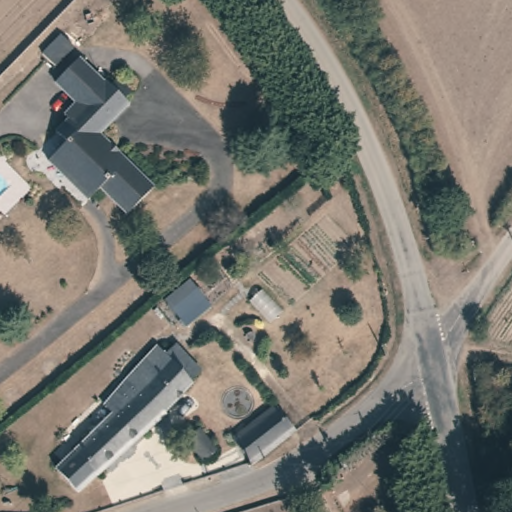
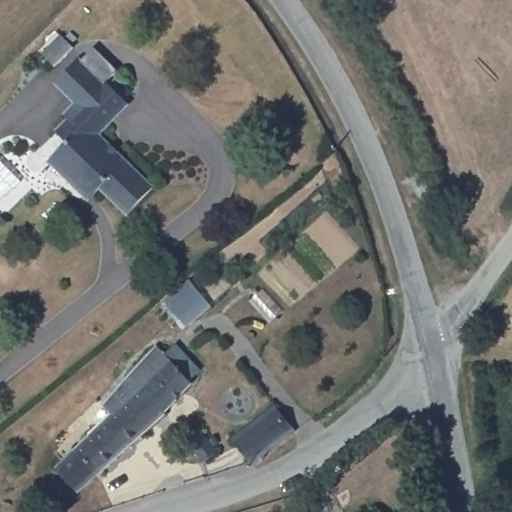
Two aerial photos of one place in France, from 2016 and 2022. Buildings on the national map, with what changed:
unchanged [(52,62),(39,50),(57,29),(70,42),(52,62)]
unchanged [(84,56),(107,79),(82,104),(58,78),(84,56)]
unchanged [(59,152),(70,141),(59,128),(82,104),(107,79),(111,82),(119,74),(136,90),(129,97),(132,101),(104,132),(117,145),(112,150),(117,154),(121,151),(159,189),(134,215),(109,189),(100,195),(97,192),(92,197),(72,177),(54,157),(59,152)]
unchanged [(72,457),(90,435),(86,431),(125,381),(152,352),(162,341),(197,372),(187,384),(93,478),(72,457)]
unchanged [(258,461),(237,437),(280,402),(301,427),(258,461)]
unchanged [(210,459),(191,437),(202,426),(222,447),(210,459)]

